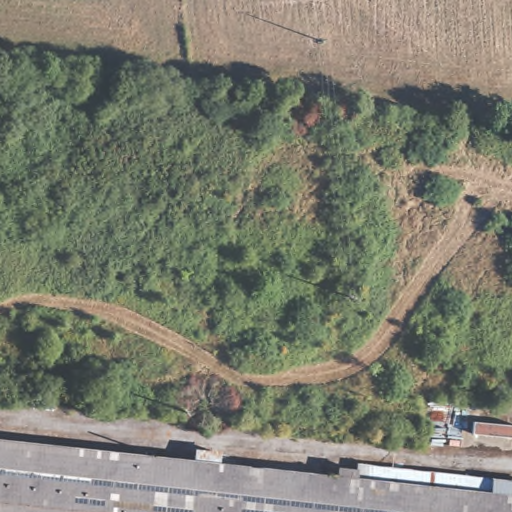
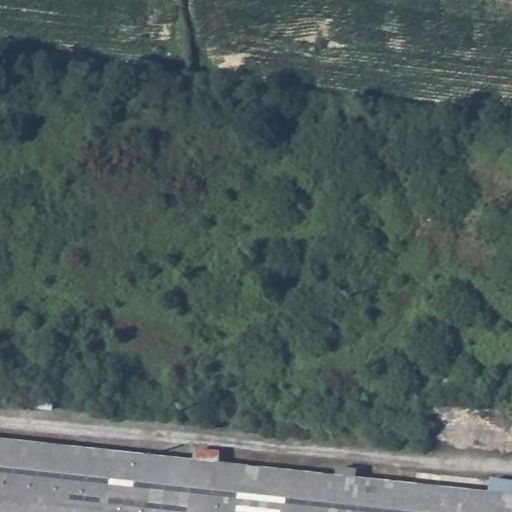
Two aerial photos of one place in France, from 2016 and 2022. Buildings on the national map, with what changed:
unchanged [(190,468),(191,457),(217,459),(216,471),(332,484),(512,503),(512,512),(0,512),(0,446),(190,468)]
unchanged [(512,503),(332,484),(334,473),(351,474),(351,470),(512,486),(512,503)]

